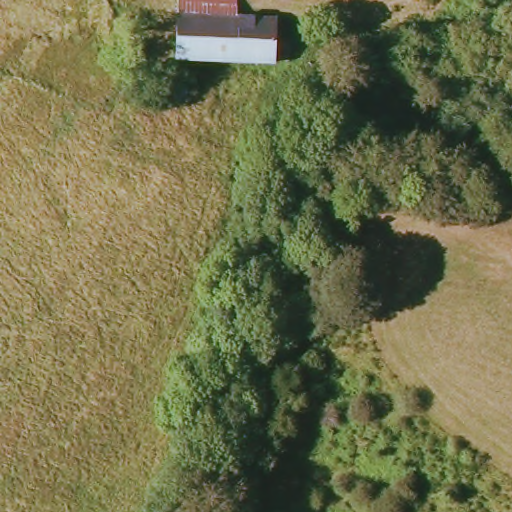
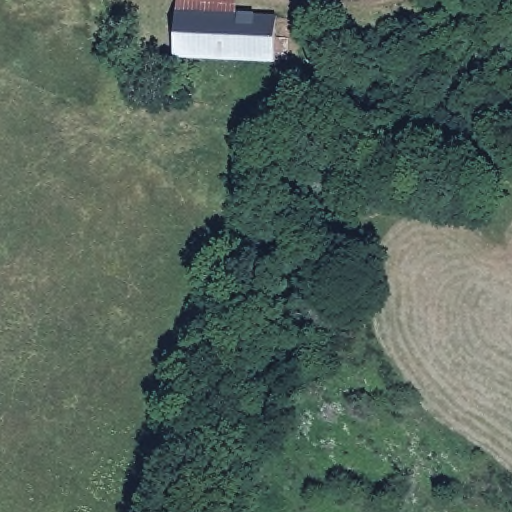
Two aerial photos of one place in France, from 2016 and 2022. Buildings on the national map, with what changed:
unchanged [(177,0),(230,0),(237,1),(238,14),(274,16),(274,39),(292,41),(292,62),(274,61),(273,66),(197,63),(175,62),(177,7),(177,0)]
unchanged [(172,94),(171,73),(197,73),(196,95),(172,94)]

